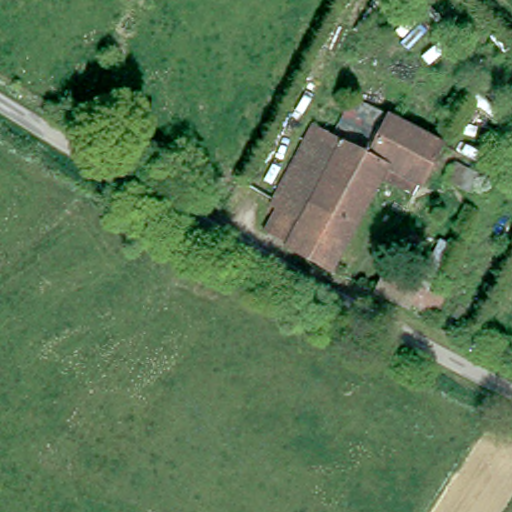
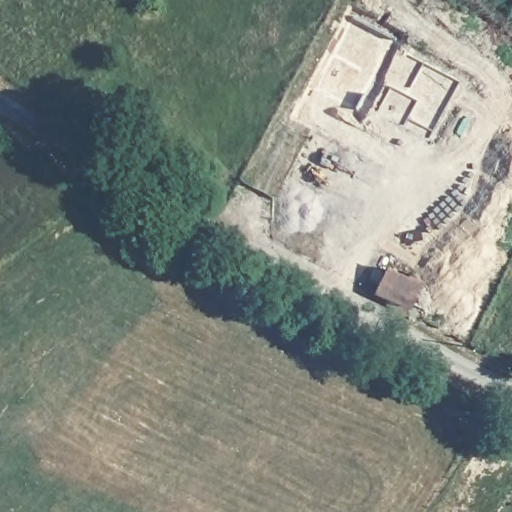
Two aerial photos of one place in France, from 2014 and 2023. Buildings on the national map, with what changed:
demolished [(446,145),(426,184),(423,182),(392,165),(387,177),(337,271),(291,247),(292,243),(271,232),(284,208),(277,204),(318,125),(337,135),(357,98),(446,145)]
unchanged [(417,193),(387,177),(392,165),(423,182),(417,193)]
unchanged [(426,305),(411,299),(409,302),(376,287),(386,264),(420,279),(435,285),(426,305)]

